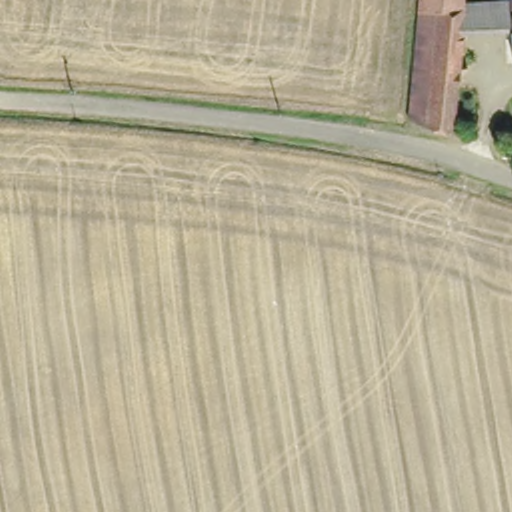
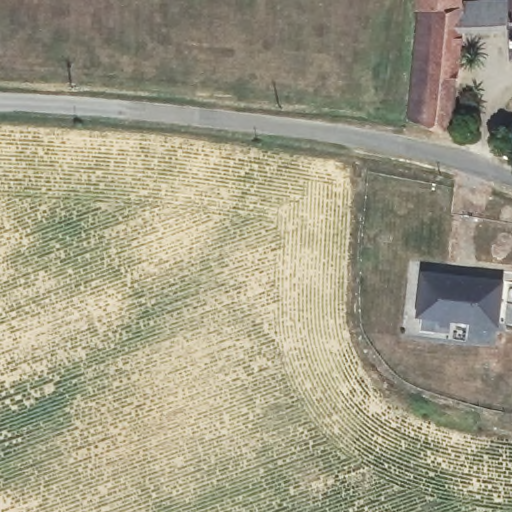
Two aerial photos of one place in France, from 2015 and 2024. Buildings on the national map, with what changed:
unchanged [(414,0),(456,0),(456,33),(455,133),(415,122),(414,0)]
unchanged [(456,0),(502,0),(505,28),(456,33),(456,0)]
unchanged [(505,28),(502,0),(512,0),(512,59),(508,59),(505,28)]
new [(417,318),(422,274),(504,282),(499,327),(417,318)]

